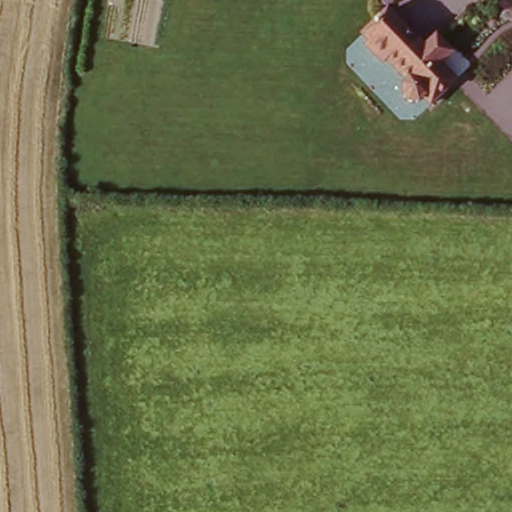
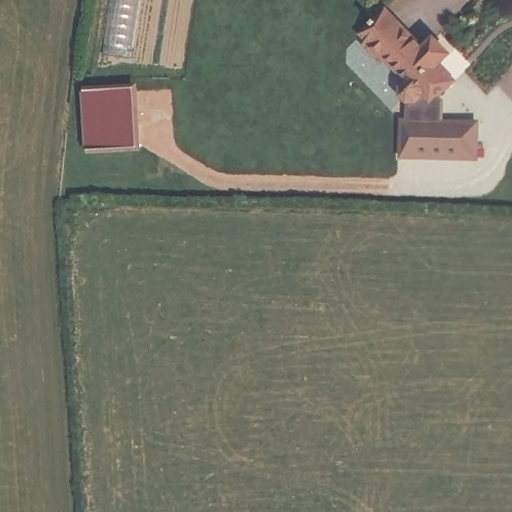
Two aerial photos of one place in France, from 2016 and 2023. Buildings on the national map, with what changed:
unchanged [(386,15),(424,55),(435,45),(450,61),(440,72),(455,87),(430,110),(423,102),(417,108),(410,107),(401,99),(402,92),(408,86),(387,64),(382,67),(365,49),(370,45),(362,37),(386,15)]
new [(134,92),(137,152),(85,155),(81,96),(134,92)]
new [(417,108),(423,102),(430,110),(440,102),(443,104),(444,123),(479,125),(479,167),(400,164),(400,123),(408,123),(410,107),(417,108)]

